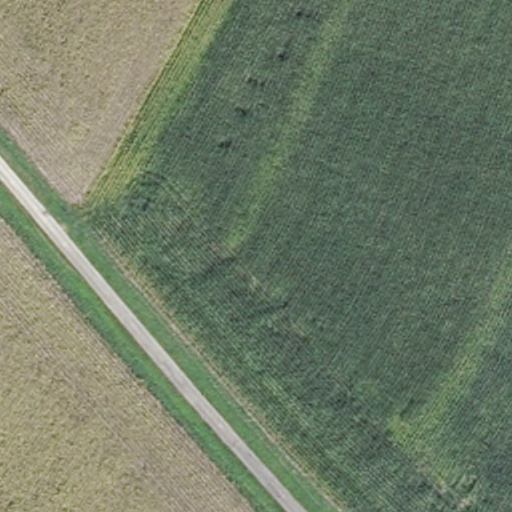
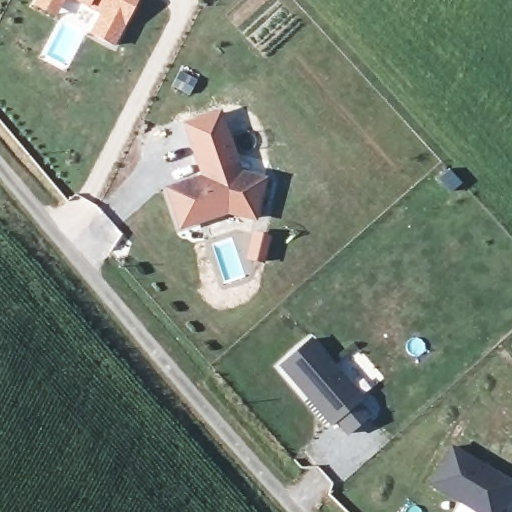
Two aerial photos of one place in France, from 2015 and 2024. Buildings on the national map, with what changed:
new [(44,0),(62,0),(57,7),(44,0)]
new [(115,39),(92,26),(103,6),(92,0),(136,0),(115,39)]
new [(194,95),(177,86),(185,71),(201,80),(194,95)]
new [(228,216),(181,232),(168,195),(204,182),(198,165),(184,130),(216,118),(230,152),(219,157),(226,175),(265,184),(255,223),(228,216)]
new [(288,365),(319,339),(341,365),(350,375),(370,397),(365,402),(377,415),(357,433),(345,420),(340,424),(320,401),(311,391),(288,365)]
new [(512,498),(510,501),(506,498),(498,512),(479,512),(430,485),(452,447),(512,482),(512,498)]

